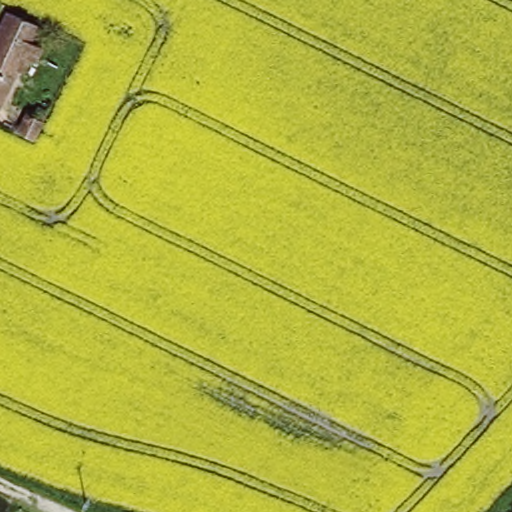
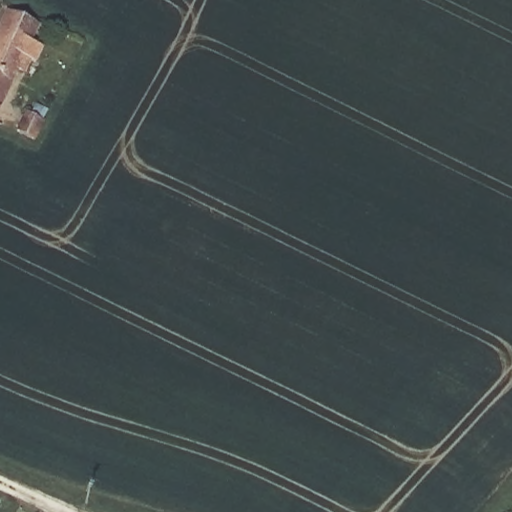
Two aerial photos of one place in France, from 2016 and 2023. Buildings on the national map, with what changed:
unchanged [(6,3),(42,20),(35,35),(44,39),(35,56),(27,52),(0,106),(0,15),(6,3)]
unchanged [(47,120),(37,140),(25,135),(35,114),(47,120)]

